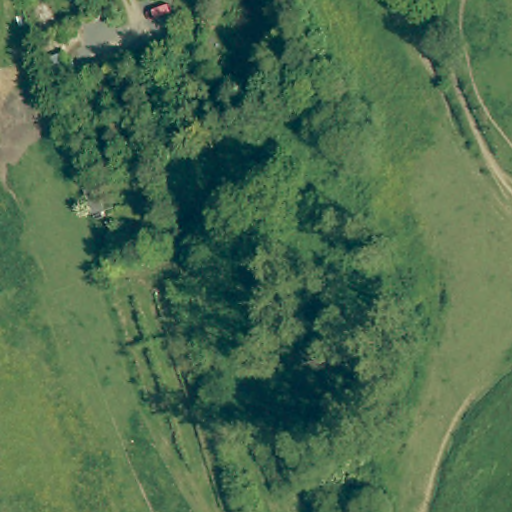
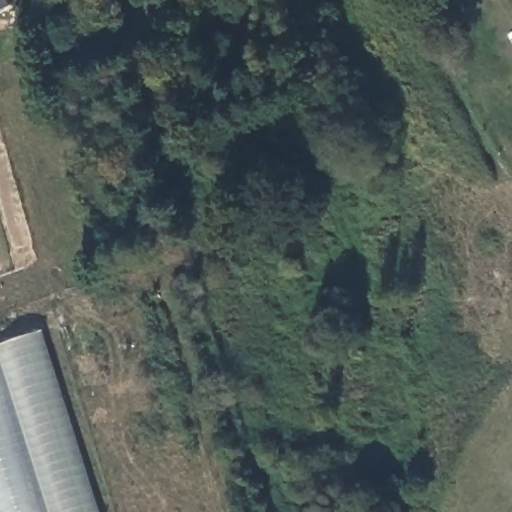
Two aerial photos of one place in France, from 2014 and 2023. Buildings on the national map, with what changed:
new [(45,329),(101,512),(0,512),(0,511),(0,344),(45,329)]

